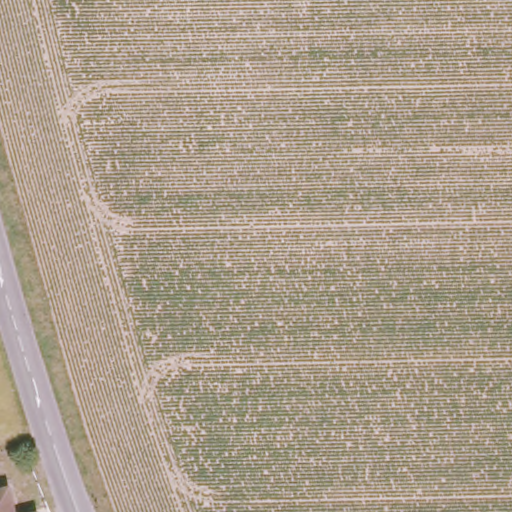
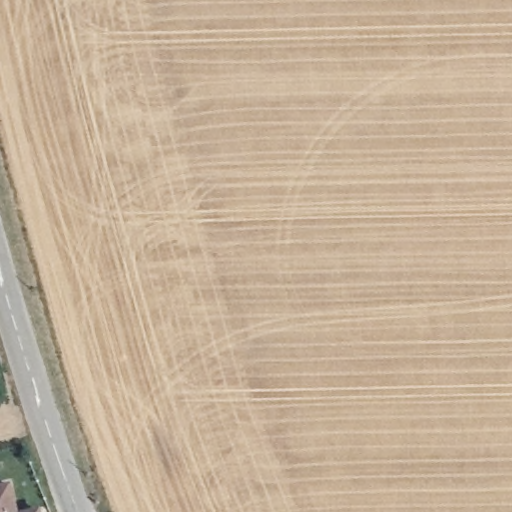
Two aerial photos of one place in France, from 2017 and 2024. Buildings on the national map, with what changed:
unchanged [(2,480),(10,511),(30,506),(32,512),(0,512),(0,480),(2,480)]

